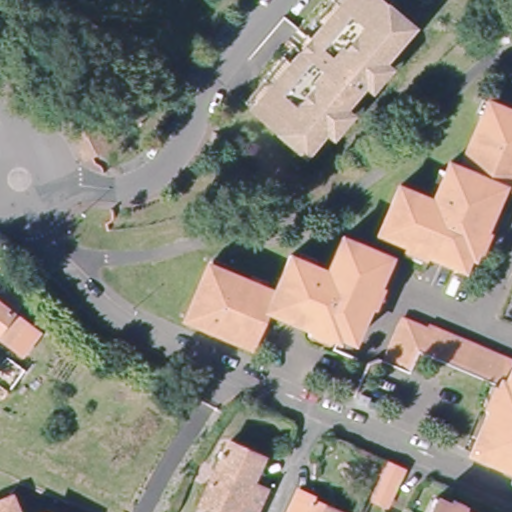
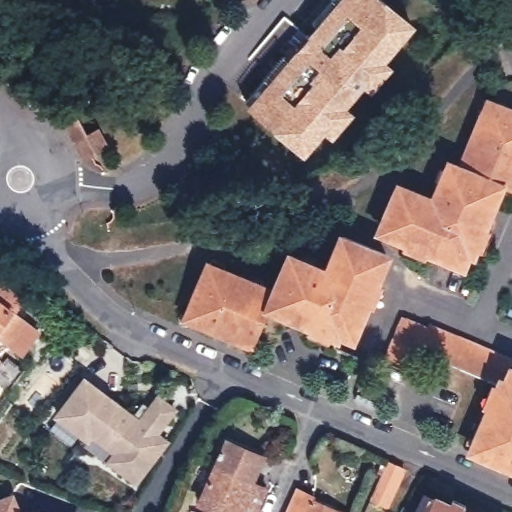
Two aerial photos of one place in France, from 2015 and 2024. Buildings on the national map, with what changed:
unchanged [(299,61),(310,49),(305,45),(315,34),(320,37),(329,27),(321,21),(339,0),(390,0),(420,27),(311,151),(260,106),(252,100),(292,54),(299,61)]
unchanged [(496,12),(496,15),(509,12),(512,24),(512,28),(500,31),(495,32),(491,16),(496,12)]
unchanged [(471,252),(465,251),(458,266),(392,239),(394,235),(377,227),(397,184),(435,200),(436,196),(431,194),(445,161),(455,165),(483,102),(512,114),(512,189),(511,190),(500,185),(492,203),(489,209),(486,219),(471,252)]
demolished [(77,135),(67,115),(79,109),(88,128),(77,135)]
unchanged [(182,318),(206,264),(272,292),(289,255),(321,268),(319,273),(324,276),(341,237),(383,254),(376,271),(382,273),(351,340),(340,336),(337,340),(300,323),(286,317),(265,309),(248,348),(231,341),(215,333),(182,318)]
unchanged [(19,291),(10,305),(17,310),(0,333),(0,277),(19,291)]
new [(17,310),(42,330),(24,358),(0,333),(17,310)]
unchanged [(470,442),(476,429),(490,397),(495,386),(502,388),(505,381),(421,345),(410,368),(384,357),(405,312),(428,324),(431,321),(512,356),(512,461),(477,446),(470,442)]
new [(84,377),(139,419),(158,392),(179,409),(160,435),(171,441),(136,486),(105,462),(112,453),(93,440),(88,445),(54,416),(84,377)]
unchanged [(253,512),(211,512),(217,496),(203,490),(219,452),(269,473),(253,512)]
unchanged [(367,491),(377,467),(382,457),(400,466),(396,475),(387,499),(367,491)]
unchanged [(309,496),(347,512),(283,512),(295,485),(310,491),(309,496)]
unchanged [(442,496),(477,512),(429,512),(437,494),(442,496)]
unchanged [(16,498),(22,512),(0,512),(0,505),(16,498)]

